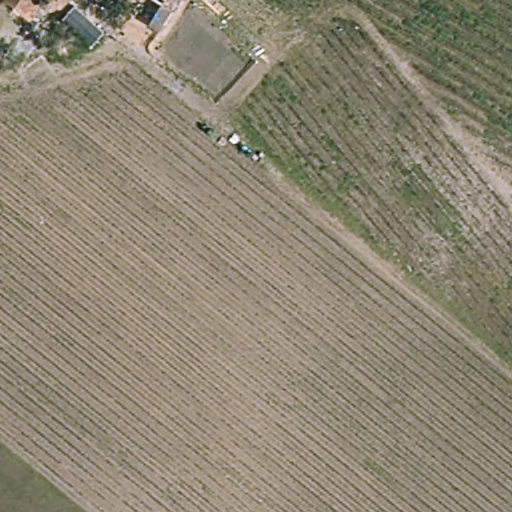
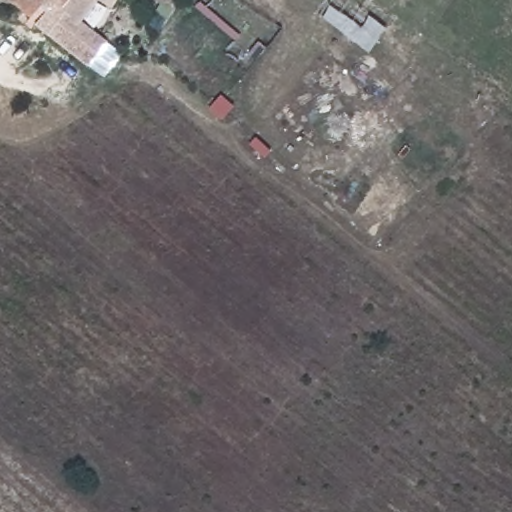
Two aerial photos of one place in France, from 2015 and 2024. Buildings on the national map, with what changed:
unchanged [(31,20),(13,0),(48,0),(31,20)]
new [(99,1),(83,22),(108,43),(89,68),(36,26),(50,11),(45,9),(42,7),(48,0),(55,0),(57,1),(58,0),(118,0),(112,10),(99,1)]
unchanged [(57,1),(55,0),(58,0),(57,1)]
unchanged [(168,12),(150,0),(174,0),(168,12)]

